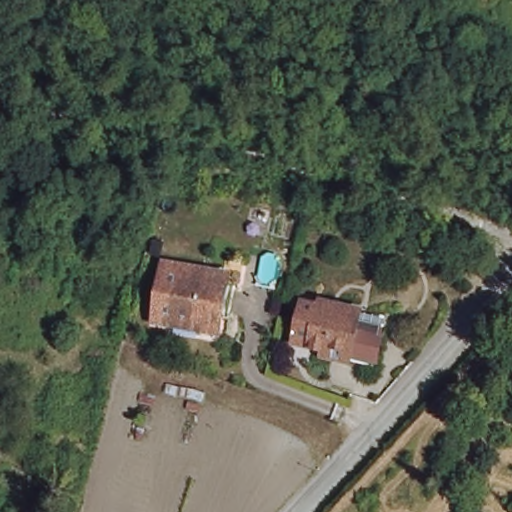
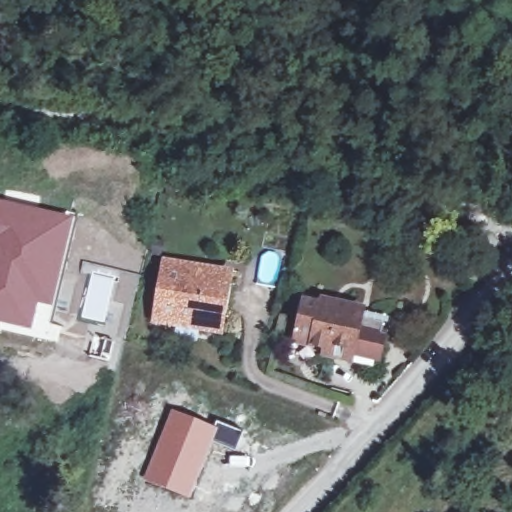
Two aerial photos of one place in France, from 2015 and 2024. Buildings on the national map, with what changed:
new [(54,310),(40,306),(33,331),(0,323),(0,197),(75,215),(54,310)]
unchanged [(164,270),(165,263),(184,266),(204,270),(222,273),(220,280),(221,281),(232,282),(226,313),(217,311),(213,327),(193,324),(156,317),(158,309),(164,270)]
unchanged [(341,353),(318,349),(320,342),(285,335),(294,296),(326,303),(328,298),(351,304),(350,312),(375,317),(370,336),(373,336),(370,348),(368,348),(366,359),(341,353)]
new [(170,408),(217,427),(217,421),(243,431),(235,451),(212,442),(188,499),(141,480),(170,408)]

